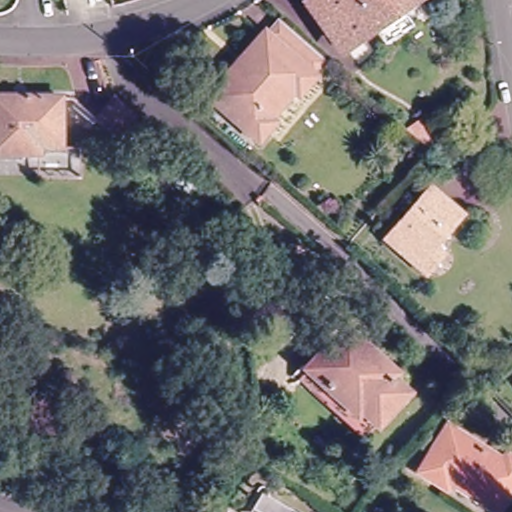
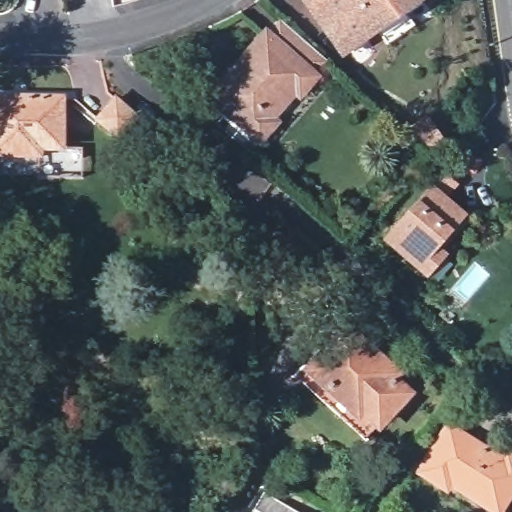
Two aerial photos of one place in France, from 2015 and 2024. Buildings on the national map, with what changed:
unchanged [(375,43),(363,29),(334,52),(298,6),(306,0),(400,0),(387,10),(399,25),(375,43)]
unchanged [(313,64),(301,78),(309,84),(293,102),(290,98),(264,128),(268,132),(254,148),(205,106),(259,42),(266,48),(278,33),(313,64)]
unchanged [(56,146),(35,145),(35,154),(0,152),(0,93),(57,95),(56,146)]
unchanged [(115,98),(137,118),(119,140),(97,120),(115,98)]
unchanged [(427,191),(457,213),(434,247),(444,254),(431,271),(390,242),(427,191)]
unchanged [(308,364),(326,342),(320,335),(338,315),(395,369),(392,374),(406,388),(363,435),(335,408),(298,375),(308,364)]
unchanged [(449,428),(494,457),(504,455),(512,460),(512,485),(496,510),(448,480),(444,486),(421,471),(449,428)]

